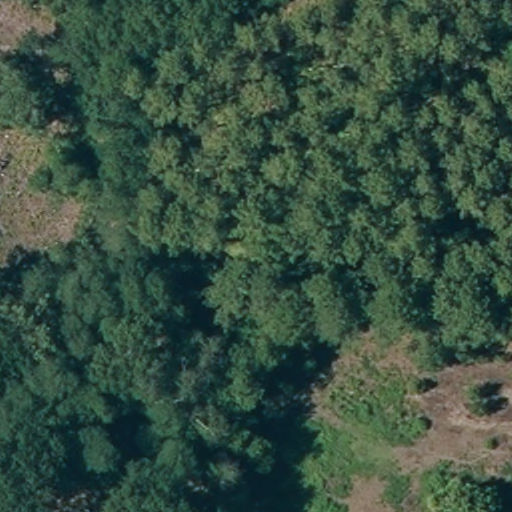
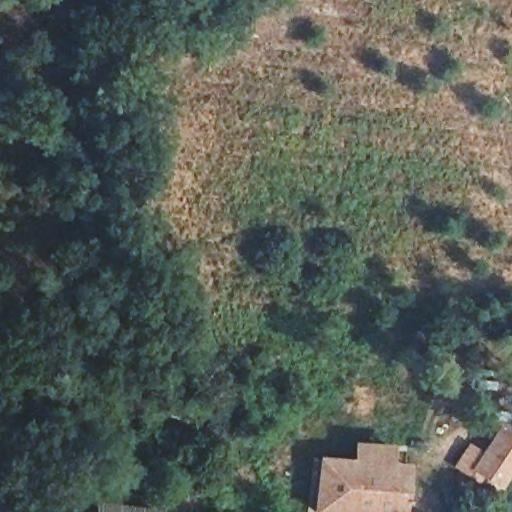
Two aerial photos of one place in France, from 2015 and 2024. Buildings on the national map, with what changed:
new [(472,470),(498,427),(512,435),(512,474),(503,488),(472,470)]
new [(406,512),(313,512),(316,455),(351,458),(353,440),(395,443),(393,462),(410,463),(406,512)]

